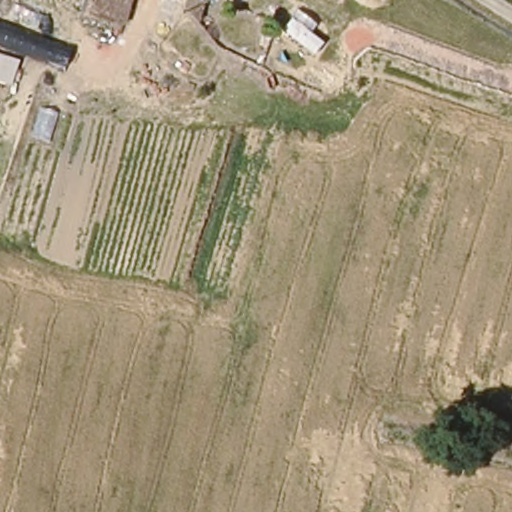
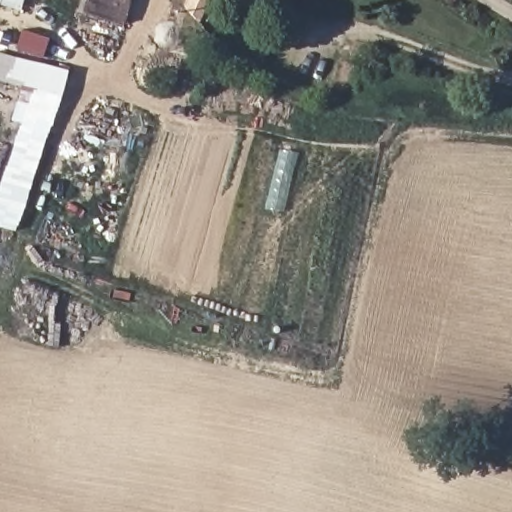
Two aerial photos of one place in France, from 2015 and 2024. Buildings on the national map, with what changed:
new [(0,6),(0,0),(25,0),(24,11),(0,6)]
unchanged [(122,27),(81,15),(84,0),(130,0),(122,27)]
demolished [(198,23),(182,6),(184,0),(205,0),(198,23)]
unchanged [(172,42),(165,60),(152,54),(158,37),(172,42)]
new [(0,52),(70,77),(14,232),(0,228),(0,185),(22,124),(11,120),(22,90),(0,82),(0,52)]

